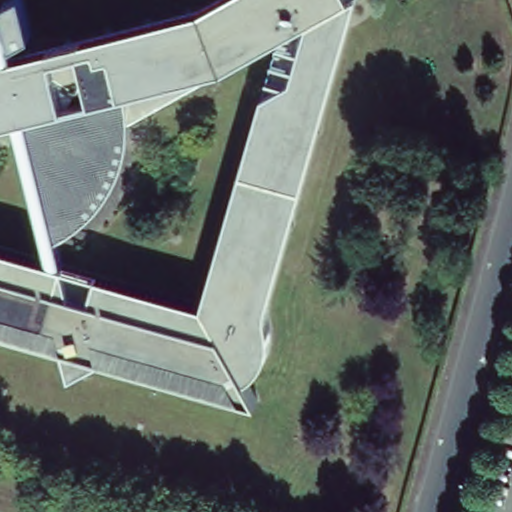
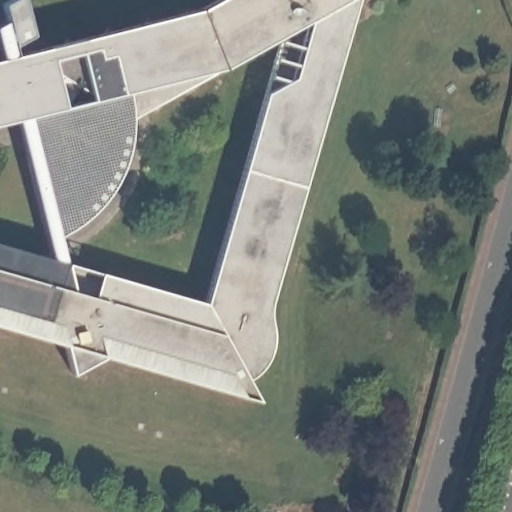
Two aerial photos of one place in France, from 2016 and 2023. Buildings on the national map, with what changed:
unchanged [(276,299),(277,311),(277,323),(275,336),(273,345),(271,352),(267,361),(264,366),(260,371),(255,375),(253,377),(250,378),(247,378),(260,404),(243,400),(230,376),(95,340),(102,376),(67,366),(59,328),(0,313),(0,245),(48,258),(15,122),(0,125),(0,57),(0,20),(7,17),(2,0),(26,0),(30,17),(10,31),(11,35),(16,52),(45,45),(203,7),(215,0),(355,0),(319,128),(275,287),(276,299)]

